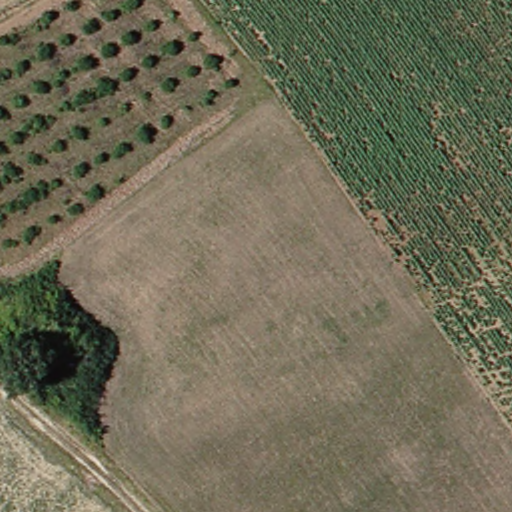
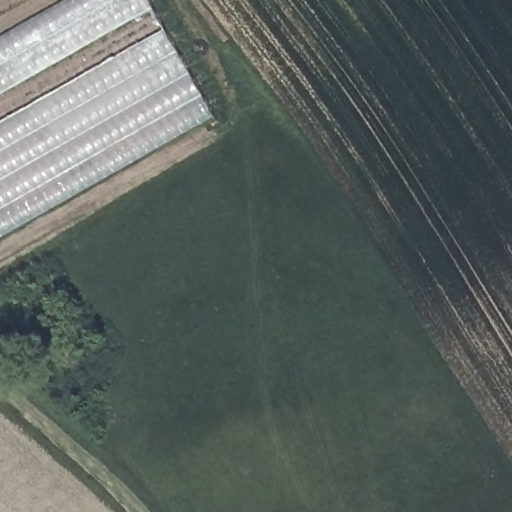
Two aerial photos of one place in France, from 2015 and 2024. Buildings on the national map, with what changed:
new [(62,0),(147,0),(213,116),(0,236),(0,35),(62,0)]

